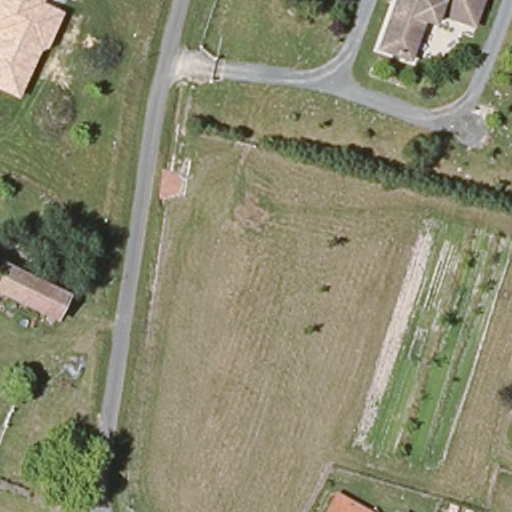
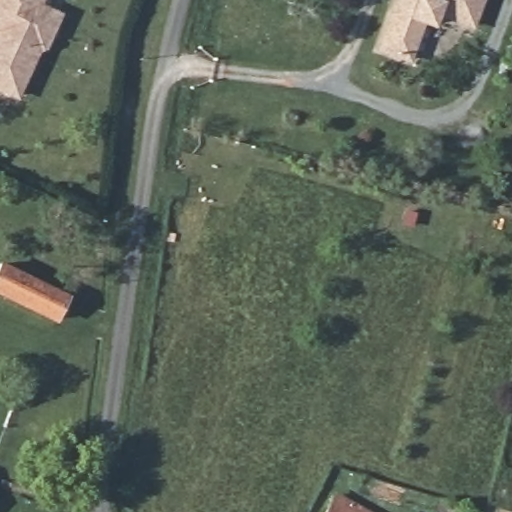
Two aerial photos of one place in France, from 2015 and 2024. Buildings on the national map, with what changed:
unchanged [(17,99),(0,91),(0,0),(42,0),(41,3),(62,13),(46,49),(39,51),(17,99)]
unchanged [(429,13),(414,61),(384,50),(402,0),(486,0),(478,28),(429,13)]
unchanged [(0,294),(0,265),(1,263),(76,300),(64,324),(0,294)]
unchanged [(338,505),(351,512),(334,512),(338,505)]

